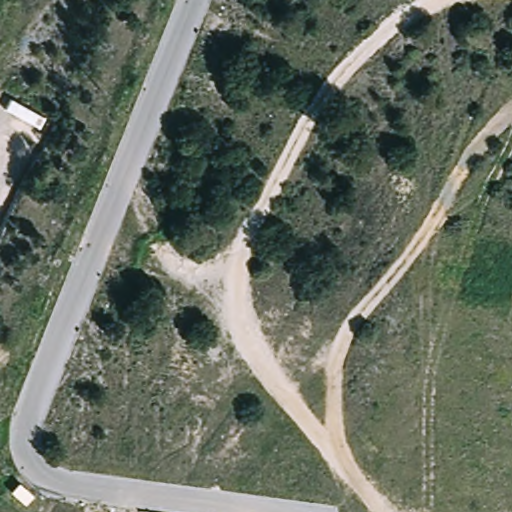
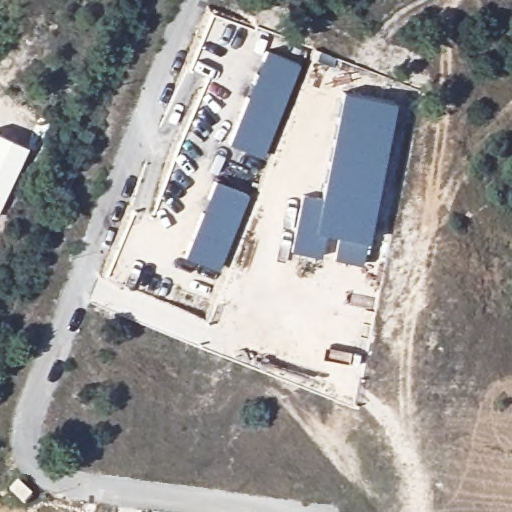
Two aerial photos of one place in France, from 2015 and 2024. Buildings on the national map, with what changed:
new [(297,63),(261,156),(229,142),(266,50),(297,63)]
new [(336,235),(324,233),(319,257),(289,251),(299,195),(320,197),(339,91),(393,101),(366,241),(361,265),(333,259),(336,235)]
new [(0,205),(0,135),(28,147),(0,205)]
new [(247,194),(216,270),(183,256),(213,181),(247,194)]

